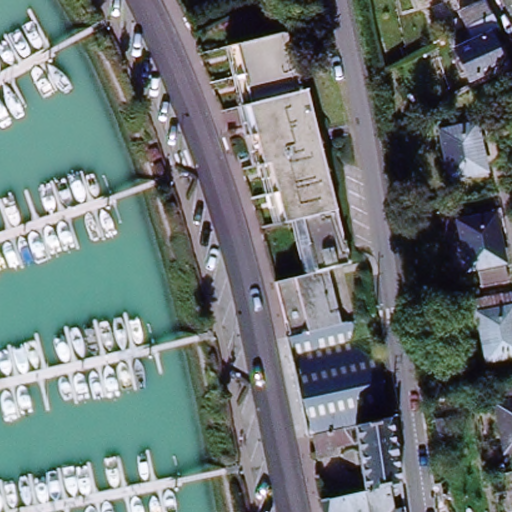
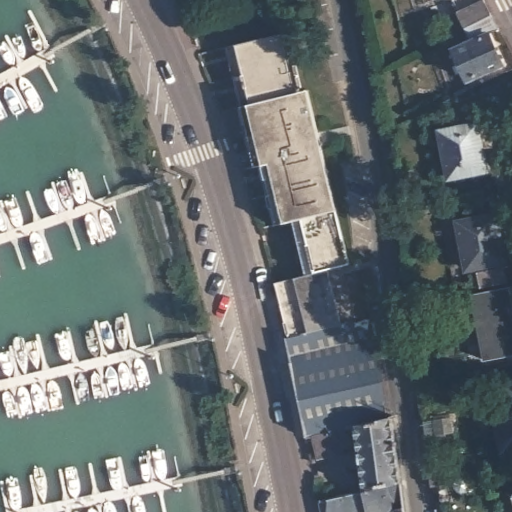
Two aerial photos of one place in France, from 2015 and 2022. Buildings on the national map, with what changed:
unchanged [(444,6),(441,0),(457,0),(444,6)]
unchanged [(494,41),(509,70),(474,90),(459,60),(477,49),(470,34),(464,20),(490,6),(497,21),(505,35),(494,41)]
unchanged [(300,38),(314,101),(316,101),(357,271),(310,280),(298,227),(289,229),(276,172),(270,172),(255,114),(257,112),(242,50),(300,38)]
unchanged [(478,129),(487,175),(453,182),(444,135),(478,129)]
unchanged [(507,219),(512,245),(512,265),(482,271),(472,226),(507,219)]
unchanged [(310,280),(357,271),(370,325),(321,335),(287,342),(275,287),(310,280)]
unchanged [(492,362),(482,316),(512,309),(512,358),(492,362)]
unchanged [(315,440),(308,441),(287,342),(321,335),(370,325),(372,325),(396,420),(315,440)]
unchanged [(511,452),(502,405),(512,403),(512,452),(511,452)]
unchanged [(371,493),(360,447),(338,452),(339,458),(321,463),(315,440),(396,420),(405,487),(371,493)]
unchanged [(371,493),(405,487),(409,512),(323,512),(322,502),(371,493)]

